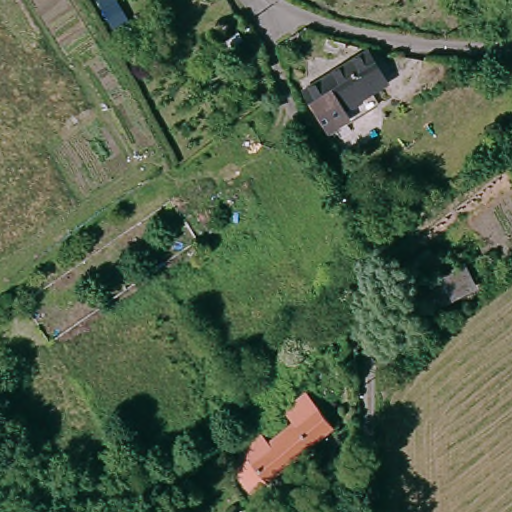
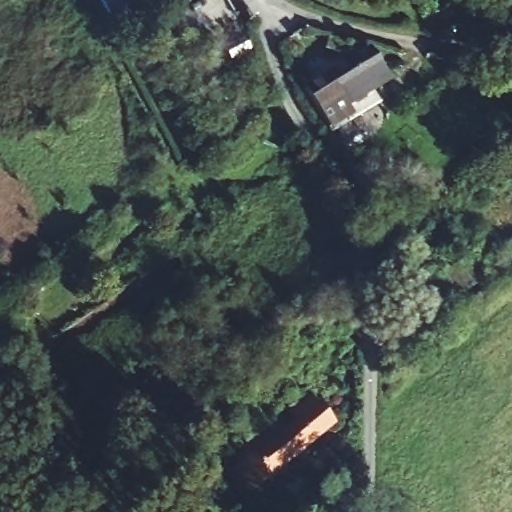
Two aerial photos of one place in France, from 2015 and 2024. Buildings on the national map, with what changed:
unchanged [(356,41),(349,46),(344,45),(342,51),(321,48),(323,35),(356,41)]
unchanged [(362,74),(372,87),(360,95),(362,98),(351,104),(349,101),(342,105),(347,111),(323,126),(299,86),(365,46),(377,64),(362,74)]
unchanged [(457,262),(467,284),(430,303),(419,282),(457,262)]
unchanged [(236,456),(232,451),(240,444),(232,436),(250,422),(261,436),(287,416),(279,406),(302,387),(310,397),(328,419),(245,485),(227,463),(236,456)]

